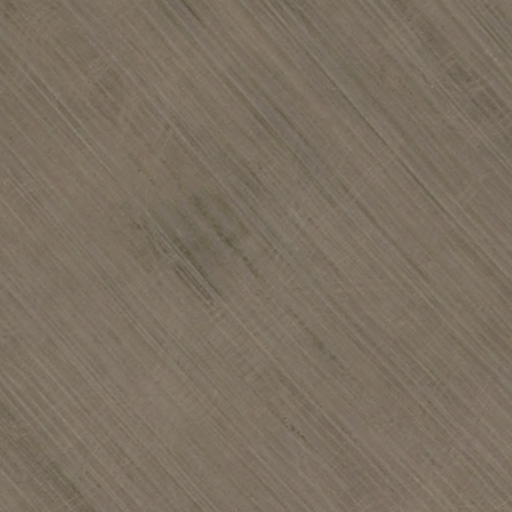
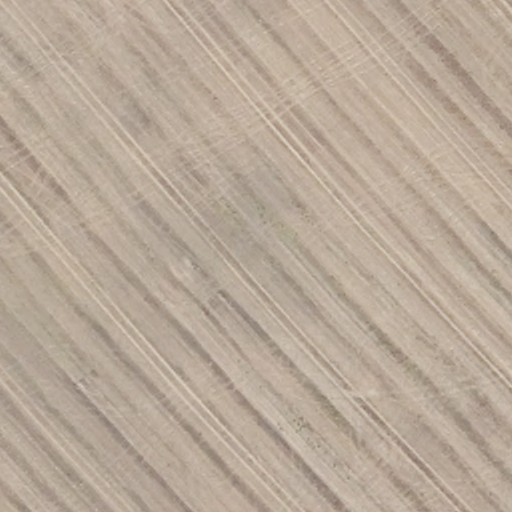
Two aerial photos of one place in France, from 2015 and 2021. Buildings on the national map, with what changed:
[]

